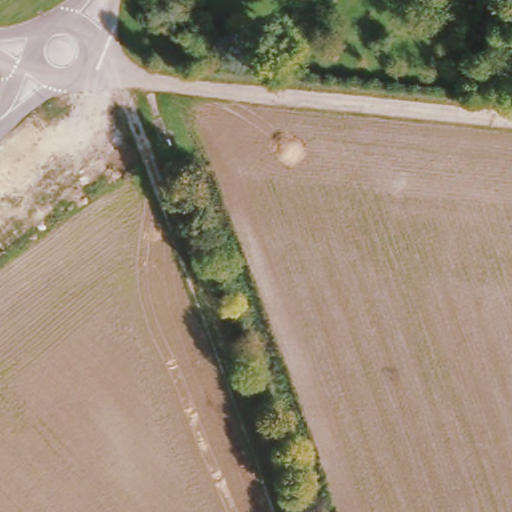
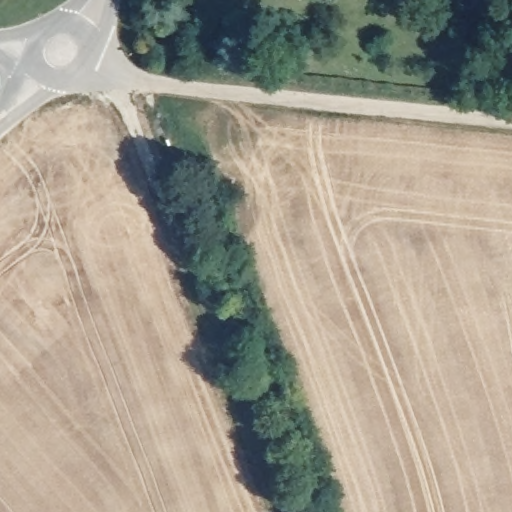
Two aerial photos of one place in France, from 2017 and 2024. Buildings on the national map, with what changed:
unchanged [(473,85),(480,53),(512,58),(512,87),(473,85)]

